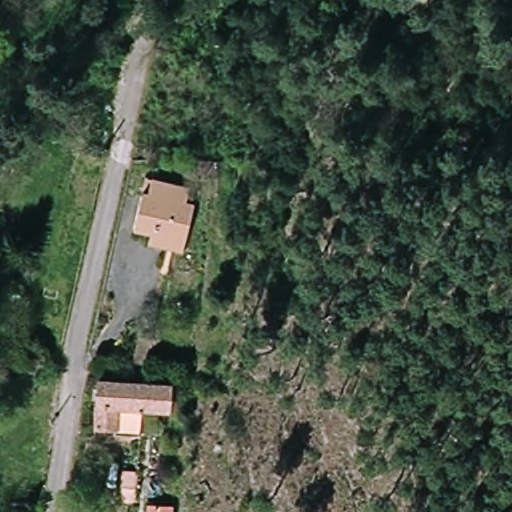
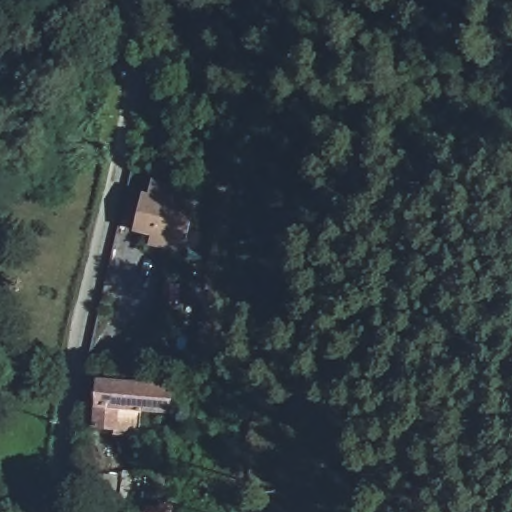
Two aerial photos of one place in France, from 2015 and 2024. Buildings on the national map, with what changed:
unchanged [(191,199),(176,257),(139,247),(143,230),(133,228),(143,195),(144,189),(151,191),(155,176),(186,186),(184,193),(191,199)]
unchanged [(144,337),(145,375),(127,374),(128,337),(144,337)]
unchanged [(145,408),(143,431),(94,425),(95,378),(174,384),(172,411),(145,408)]
unchanged [(135,473),(131,500),(115,497),(119,470),(135,473)]
unchanged [(173,512),(153,512),(154,503),(174,506),(173,512)]

